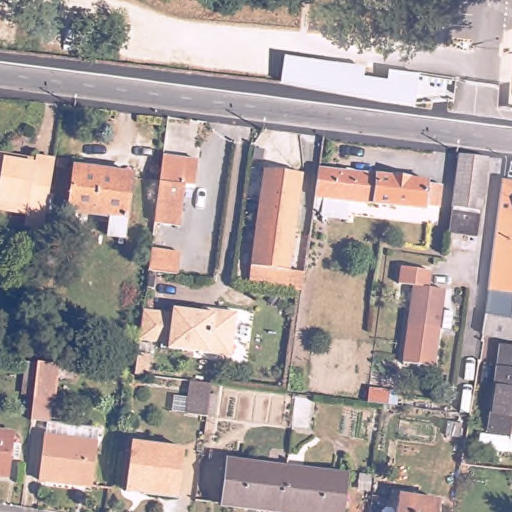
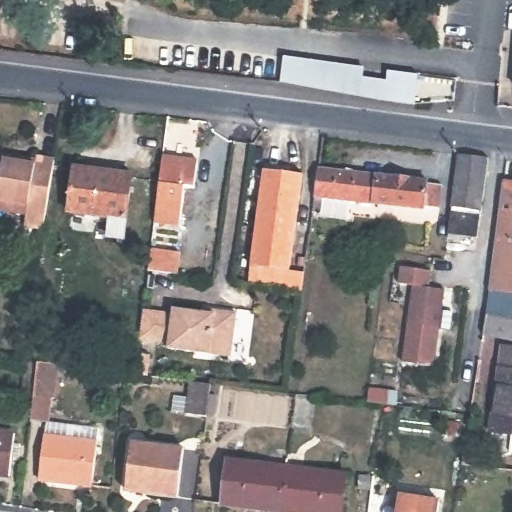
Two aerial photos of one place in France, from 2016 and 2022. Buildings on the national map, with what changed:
unchanged [(421,75),(416,105),(277,84),(283,55),(421,75)]
unchanged [(457,153),(487,156),(482,200),(481,214),(477,239),(447,235),(451,210),(457,153)]
unchanged [(167,157),(202,161),(198,189),(189,188),(184,227),(157,224),(167,157)]
unchanged [(22,227),(24,216),(0,212),(0,158),(1,158),(1,161),(32,166),(32,158),(52,161),(41,230),(22,227)]
unchanged [(317,178),(317,168),(379,176),(376,204),(350,201),(347,216),(312,212),(317,178)]
unchanged [(75,169),(132,176),(125,241),(110,238),(111,219),(70,213),(75,169)]
unchanged [(248,282),(262,171),(302,176),(288,272),(303,274),(301,289),(301,292),(247,285),(248,282)]
unchanged [(379,176),(426,182),(426,186),(442,188),(438,209),(423,207),(423,210),(376,204),(379,176)]
unchanged [(487,337),(489,322),(507,185),(512,186),(512,272),(511,280),(508,299),(510,320),(512,320),(512,341),(507,340),(487,337)]
unchanged [(147,269),(151,247),(179,252),(176,275),(147,272),(147,269)]
unchanged [(412,288),(398,286),(401,268),(431,273),(428,290),(442,291),(440,312),(452,314),(448,333),(438,332),(432,369),(401,364),(412,288)]
unchanged [(142,310),(172,314),(173,308),(212,314),(213,310),(236,313),(231,356),(169,348),(170,344),(139,339),(142,310)]
unchanged [(512,351),(512,440),(493,437),(507,350),(512,351)]
unchanged [(50,363),(85,367),(83,380),(69,378),(67,398),(64,422),(42,420),(46,396),(50,363)]
unchanged [(190,382),(211,384),(206,415),(185,413),(190,382)]
unchanged [(368,391),(388,394),(387,407),(382,406),(367,404),(368,391)]
unchanged [(57,424),(109,430),(101,489),(49,482),(57,424)]
unchanged [(15,436),(10,478),(0,477),(0,433),(15,436)]
unchanged [(137,435),(187,441),(181,490),(131,483),(137,435)]
unchanged [(227,508),(232,461),(292,469),(286,512),(265,512),(227,508)]
unchanged [(292,469),(350,476),(346,512),(286,512),(292,469)]
unchanged [(398,497),(438,503),(437,512),(396,512),(398,497)]

